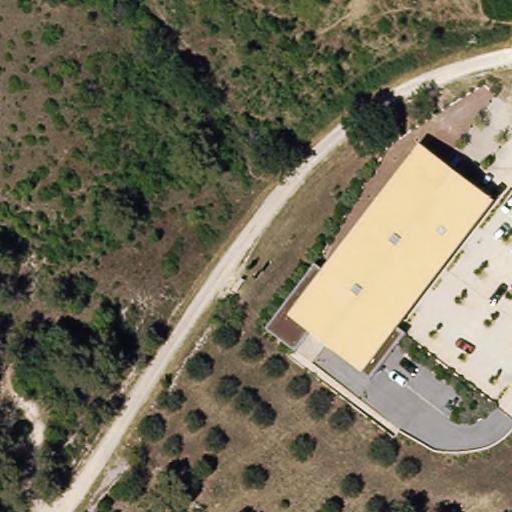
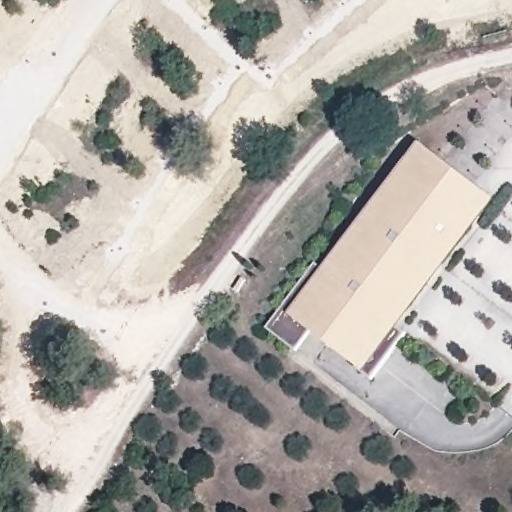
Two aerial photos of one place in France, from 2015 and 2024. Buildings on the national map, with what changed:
unchanged [(496,197),(401,324),(406,328),(373,376),(307,326),(296,342),(271,323),(318,259),(325,266),(421,141),(496,197)]

